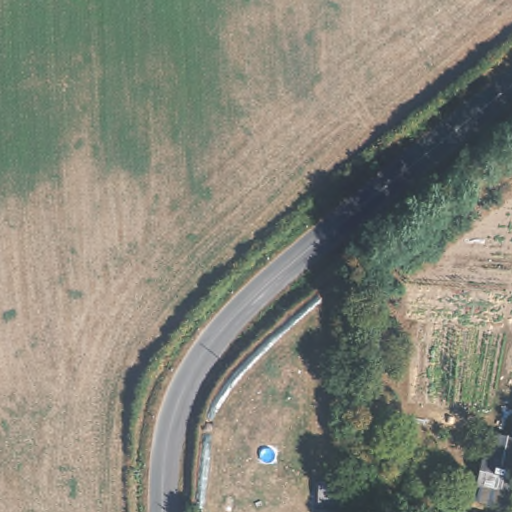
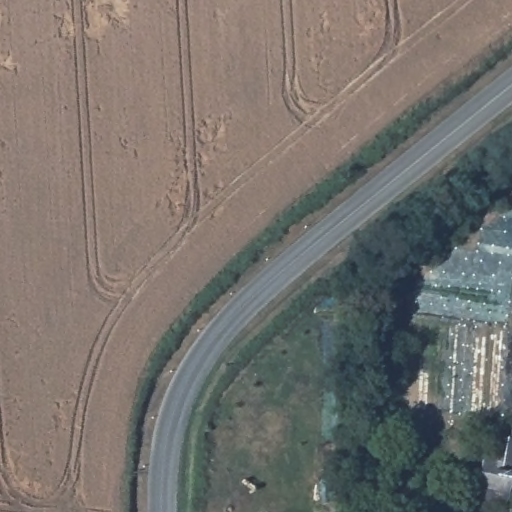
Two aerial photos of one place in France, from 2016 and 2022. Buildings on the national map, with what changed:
unchanged [(512,487),(485,481),(490,455),(512,460),(512,487)]

